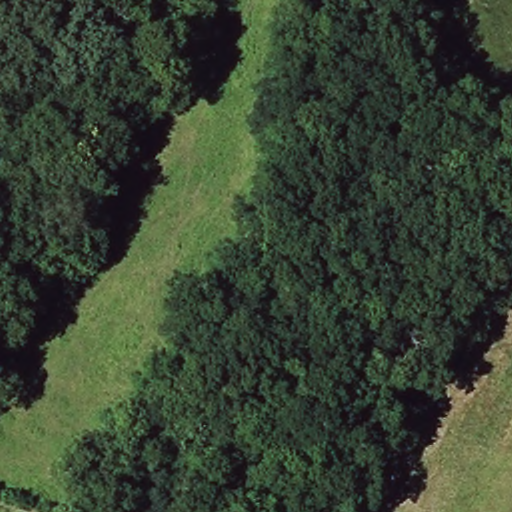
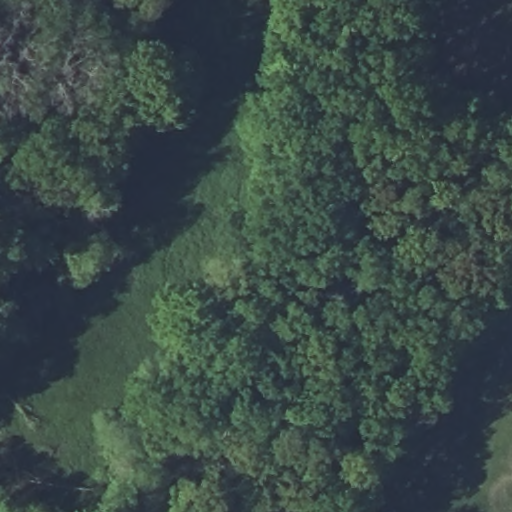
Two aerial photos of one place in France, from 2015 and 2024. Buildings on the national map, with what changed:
[]

